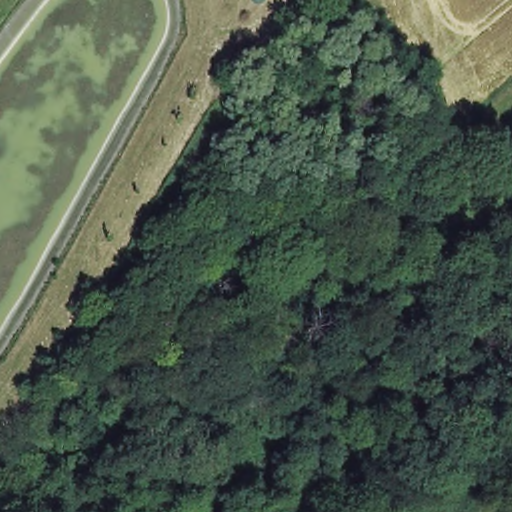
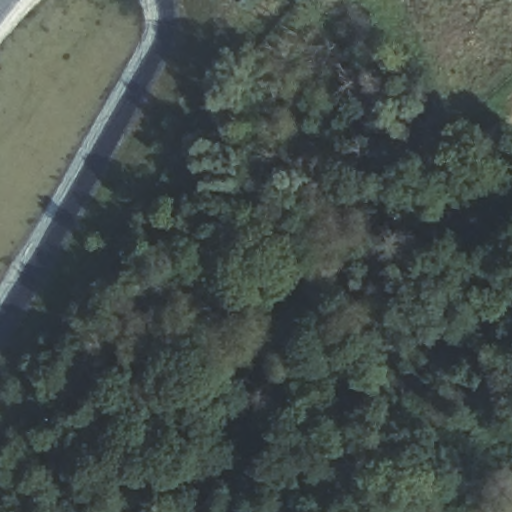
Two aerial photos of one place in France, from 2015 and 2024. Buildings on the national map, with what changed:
[]

